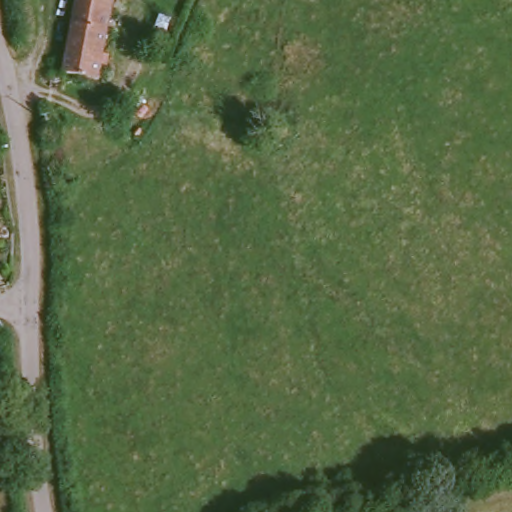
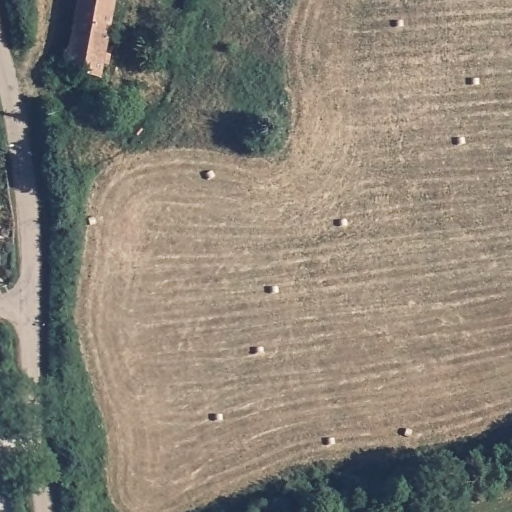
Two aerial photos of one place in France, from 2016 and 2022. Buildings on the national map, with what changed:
unchanged [(105,85),(69,76),(82,0),(120,0),(105,85)]

